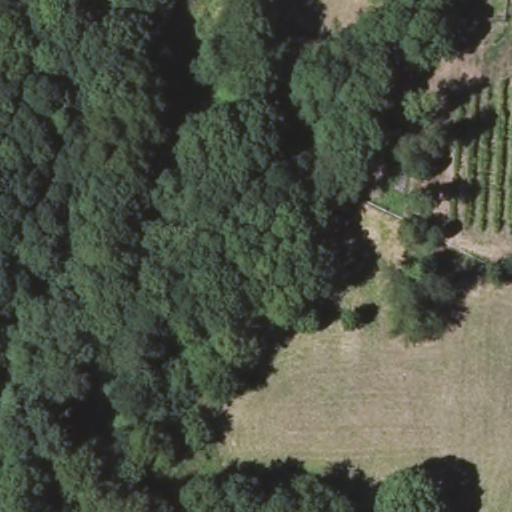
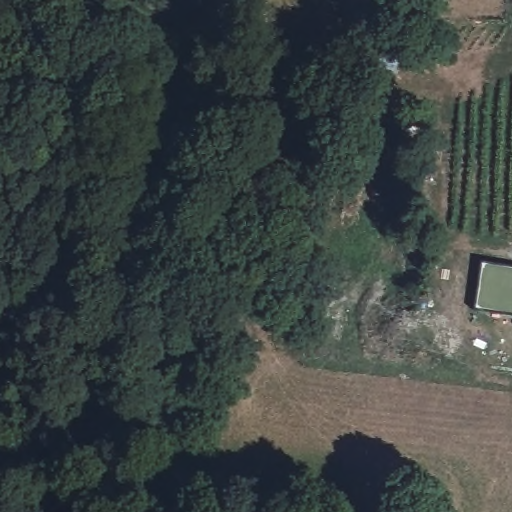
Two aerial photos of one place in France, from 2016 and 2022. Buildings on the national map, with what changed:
new [(512,267),(512,315),(475,310),(482,263),(512,267)]

